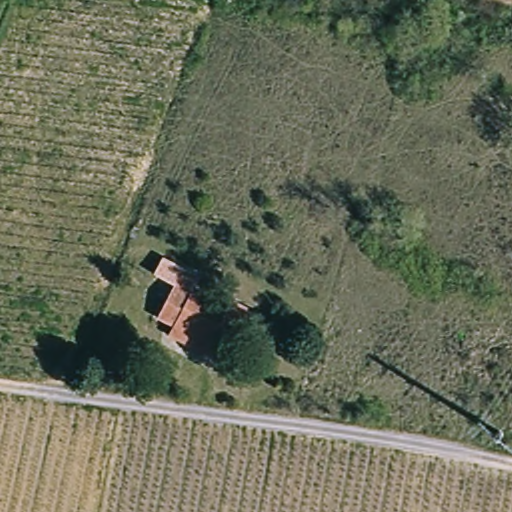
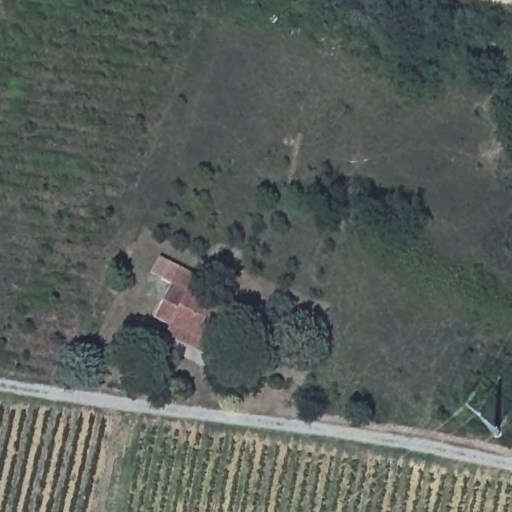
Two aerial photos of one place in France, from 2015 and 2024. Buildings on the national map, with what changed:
unchanged [(184,345),(190,332),(174,323),(188,299),(165,284),(175,263),(250,306),(224,351),(217,363),(184,345)]

